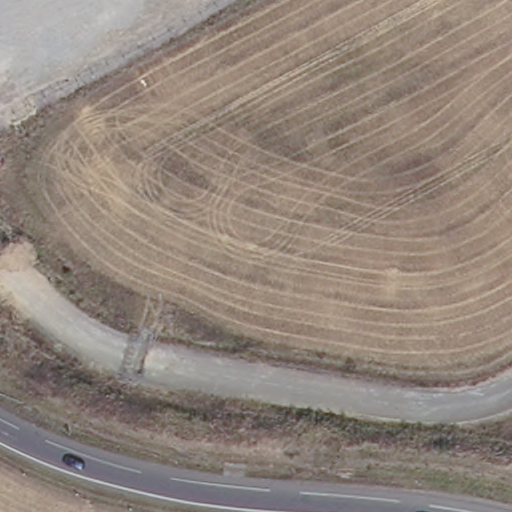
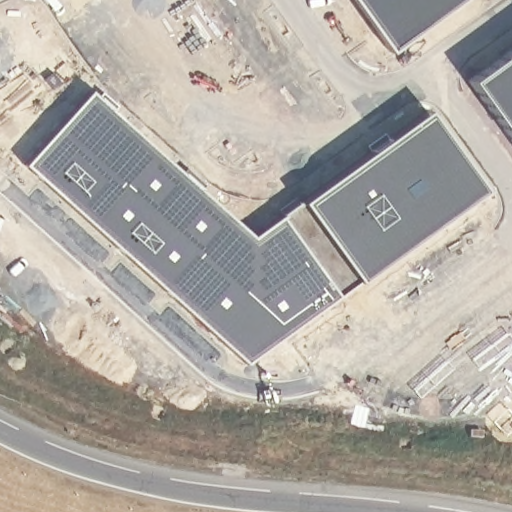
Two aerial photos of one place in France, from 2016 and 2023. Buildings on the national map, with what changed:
demolished [(0,42),(0,0),(80,0),(0,42)]
new [(389,51),(352,0),(458,0),(389,51)]
new [(512,141),(468,80),(512,48),(512,141)]
new [(252,237),(425,110),(483,190),(244,362),(24,165),(89,91),(252,237)]

